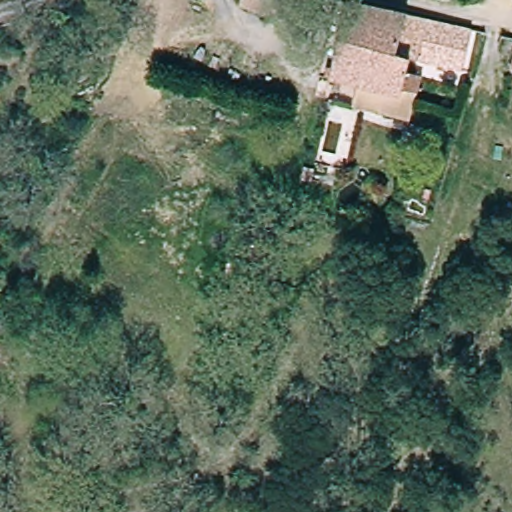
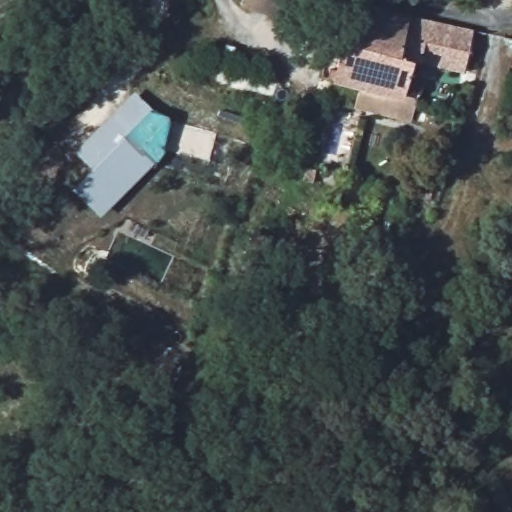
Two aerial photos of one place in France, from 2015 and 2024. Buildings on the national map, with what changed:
unchanged [(250,0),(303,0),(299,14),(250,0)]
unchanged [(393,55),(408,58),(399,94),(330,78),(346,0),(402,13),(393,55)]
unchanged [(458,68),(408,58),(393,55),(402,13),(469,29),(458,68)]
unchanged [(506,68),(512,43),(512,70),(506,68)]
new [(71,189),(91,169),(74,152),(133,91),(154,112),(234,132),(224,172),(161,155),(100,217),(71,189)]

